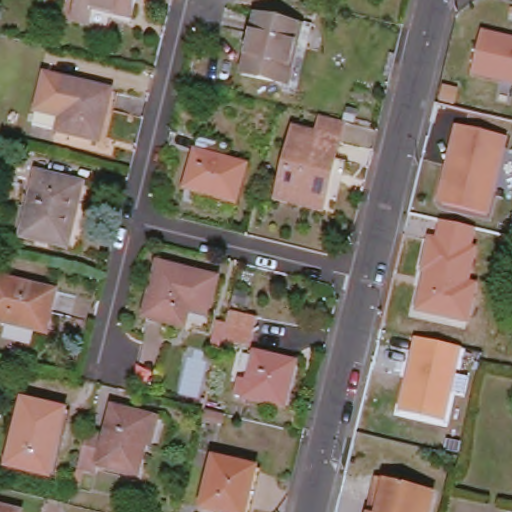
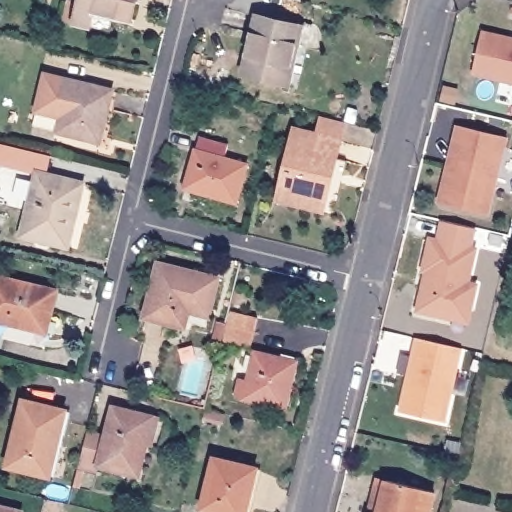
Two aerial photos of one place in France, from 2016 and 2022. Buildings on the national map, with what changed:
unchanged [(69,5),(80,7),(82,0),(138,0),(132,24),(113,19),(109,36),(64,24),(69,5)]
unchanged [(248,74),(253,47),(241,44),(244,30),(257,33),(261,15),(306,25),(293,84),(248,74)]
unchanged [(512,43),(512,88),(474,78),(484,36),(512,43)]
unchanged [(59,135),(63,121),(38,115),(47,79),(72,85),(113,95),(101,146),(59,135)]
unchanged [(276,205),(292,136),(314,142),(319,123),(339,128),(335,147),(318,215),(276,205)]
unchanged [(508,135),(489,213),(444,202),(441,197),(449,164),(454,144),(459,124),(508,135)]
unchanged [(186,187),(201,137),(229,145),(225,159),(248,165),(238,202),(186,187)]
unchanged [(23,234),(38,171),(85,183),(70,245),(23,234)]
unchanged [(474,247),(480,249),(472,285),(479,287),(471,325),(417,313),(425,274),(422,273),(431,237),(439,239),(442,224),(478,232),(474,247)]
unchanged [(190,310),(186,326),(147,317),(161,262),(199,272),(219,277),(211,309),(210,316),(190,310)]
unchanged [(0,274),(59,288),(48,333),(0,321),(0,274)]
unchanged [(258,317),(251,346),(225,340),(232,310),(258,317)]
unchanged [(462,348),(446,423),(398,412),(414,338),(462,348)]
unchanged [(236,394),(240,376),(249,379),(256,351),(299,361),(288,406),(236,394)]
unchanged [(8,465),(25,399),(68,409),(52,476),(8,465)]
unchanged [(88,431),(108,436),(114,406),(154,416),(140,475),(80,460),(88,431)]
unchanged [(221,412),(218,422),(203,418),(206,408),(221,412)]
unchanged [(203,508),(216,457),(258,467),(247,512),(220,512),(203,508)]
unchanged [(435,512),(375,512),(381,483),(390,486),(438,497),(435,512)]
unchanged [(0,505),(23,510),(22,512),(0,512),(0,505)]

